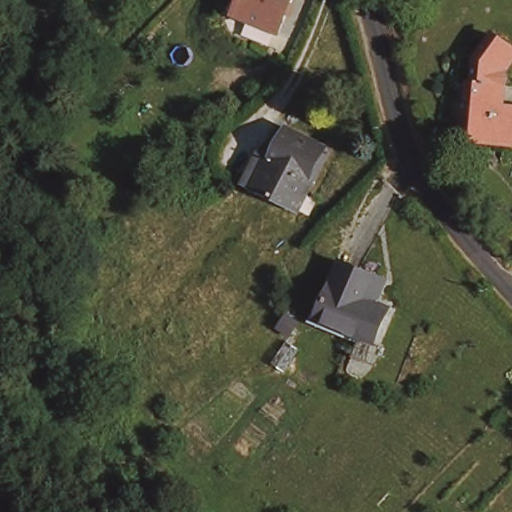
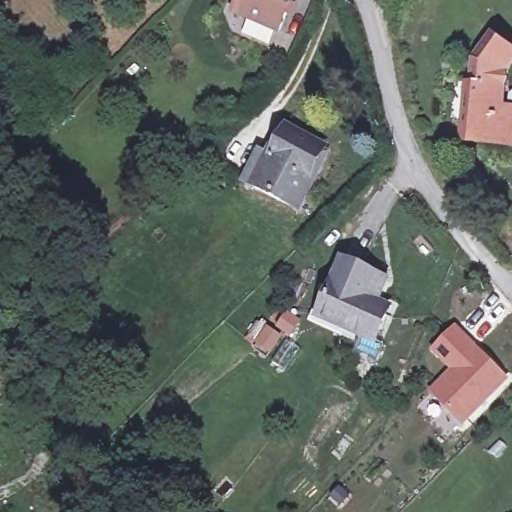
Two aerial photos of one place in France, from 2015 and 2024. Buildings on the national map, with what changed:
unchanged [(239,21),(247,0),(296,0),(282,37),(239,21)]
unchanged [(472,101),(467,99),(467,79),(472,77),(472,48),(495,25),(512,42),(512,53),(501,65),(502,107),(512,107),(512,135),(475,136),(472,101)]
unchanged [(247,188),(280,127),(322,147),(306,179),(310,182),(294,210),(247,188)]
unchanged [(378,354),(356,343),(364,325),(321,306),(347,253),(389,274),(376,302),(387,309),(378,331),(388,335),(378,354)]
new [(449,369),(432,351),(457,326),(509,378),(460,426),(426,390),(449,369)]

